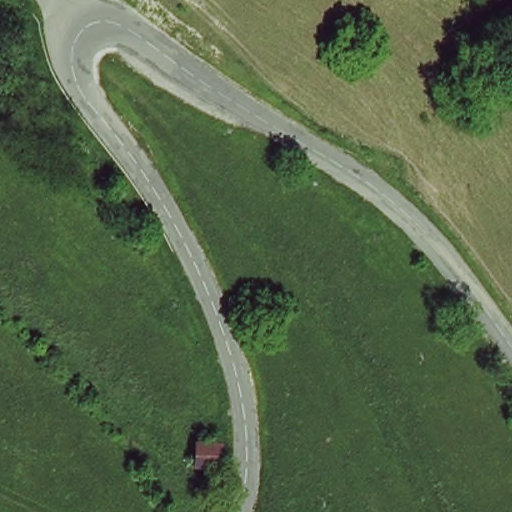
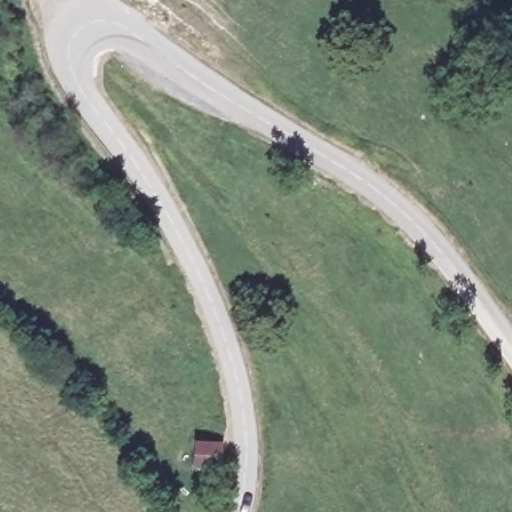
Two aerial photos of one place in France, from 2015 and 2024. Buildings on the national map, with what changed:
unchanged [(195,439),(220,436),(223,464),(198,466),(195,439)]

